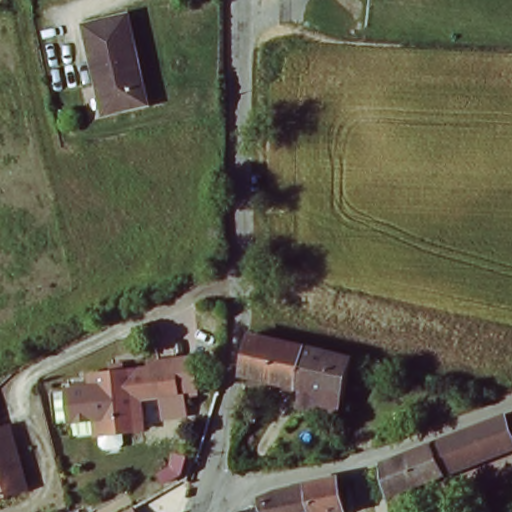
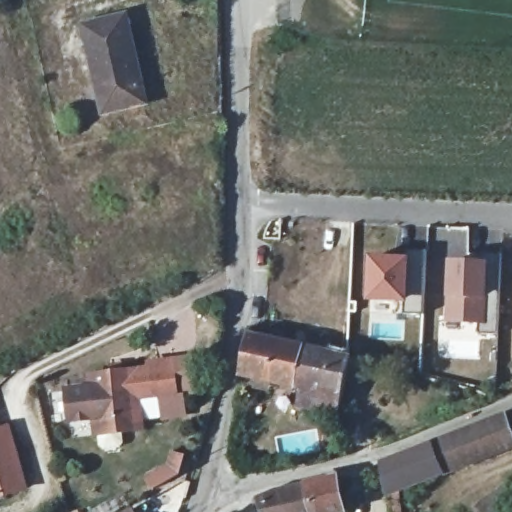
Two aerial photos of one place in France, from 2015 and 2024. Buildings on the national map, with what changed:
unchanged [(100,82),(85,21),(127,11),(147,99),(112,107),(106,109),(100,82)]
new [(406,257),(408,251),(425,252),(422,314),(405,312),(407,302),(367,301),(369,256),(406,257)]
new [(484,262),(484,255),(500,254),(497,334),(481,333),(482,325),(446,324),(446,298),(449,260),(484,262)]
unchanged [(341,408),(310,401),(308,410),(299,407),(304,385),(245,371),(248,353),(252,332),(353,357),(341,408)]
unchanged [(152,368),(151,362),(176,360),(178,395),(141,398),(143,429),(96,433),(92,373),(152,368)]
unchanged [(383,465),(470,431),(485,426),(512,418),(512,457),(404,504),(405,512),(394,512),(385,473),(383,465)]
unchanged [(3,430),(12,427),(28,492),(0,498),(0,420),(3,430)]
unchanged [(336,473),(339,472),(346,508),(332,512),(268,512),(262,500),(276,492),(308,482),(316,480),(336,473)]
unchanged [(140,507),(142,512),(122,512),(139,503),(140,507)]

